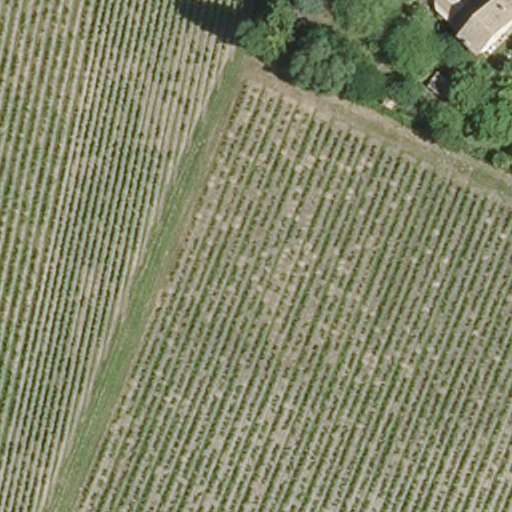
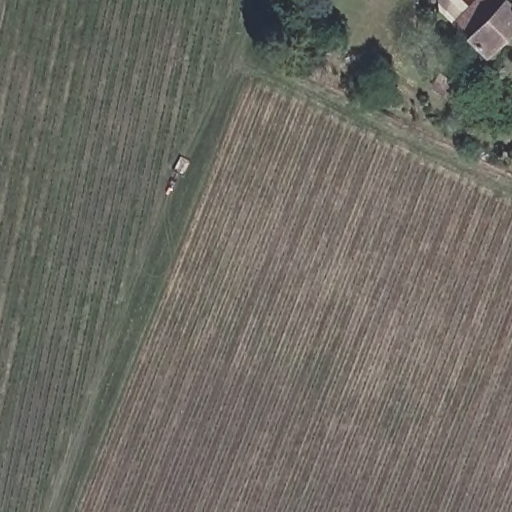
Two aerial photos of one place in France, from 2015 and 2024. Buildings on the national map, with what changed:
unchanged [(441,0),(461,0),(468,7),(476,0),(512,0),(512,28),(483,57),(451,25),(435,9),(442,2),(441,0)]

